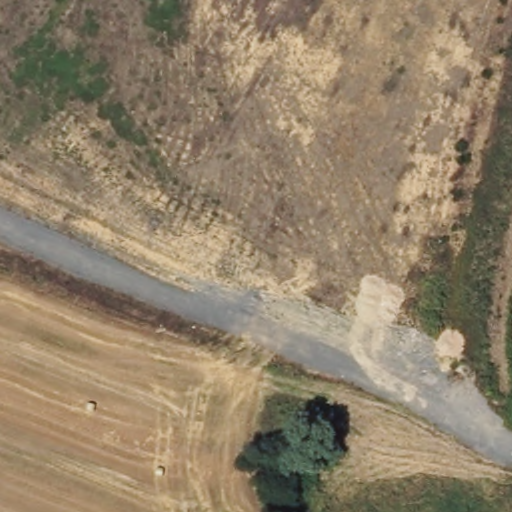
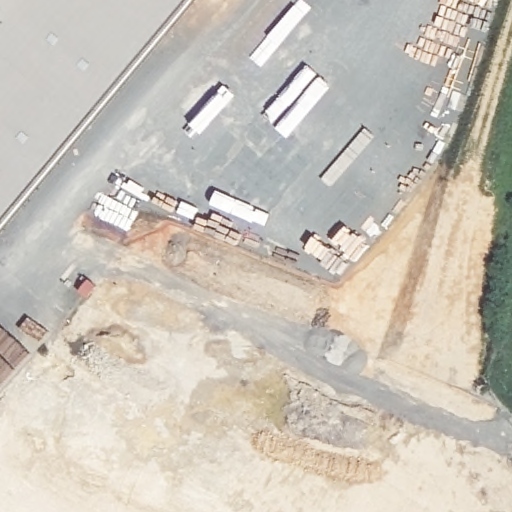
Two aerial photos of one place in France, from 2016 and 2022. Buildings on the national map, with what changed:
new [(0,222),(0,0),(188,0),(0,222)]

